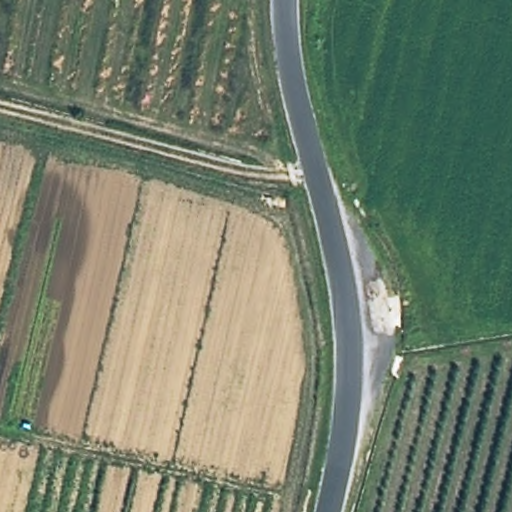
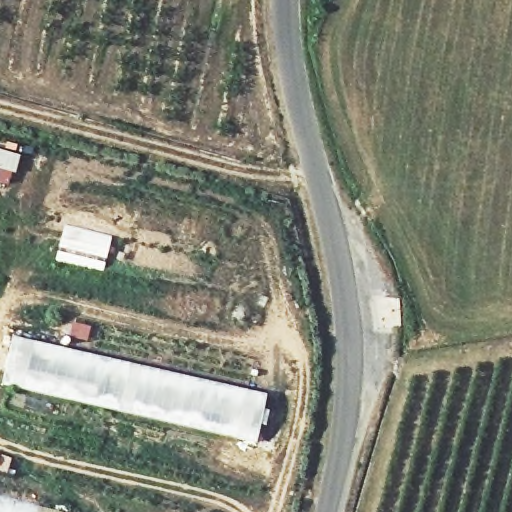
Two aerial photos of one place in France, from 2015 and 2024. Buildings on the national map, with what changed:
new [(102,272),(55,261),(65,227),(111,239),(102,272)]
new [(267,396),(256,443),(2,386),(12,338),(267,396)]
new [(40,507),(38,512),(0,512),(0,496),(40,507)]

